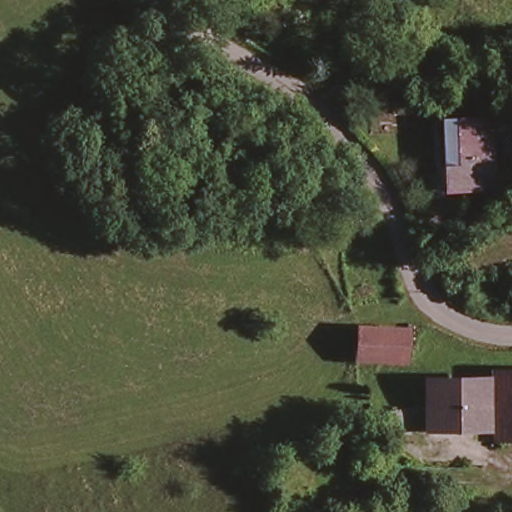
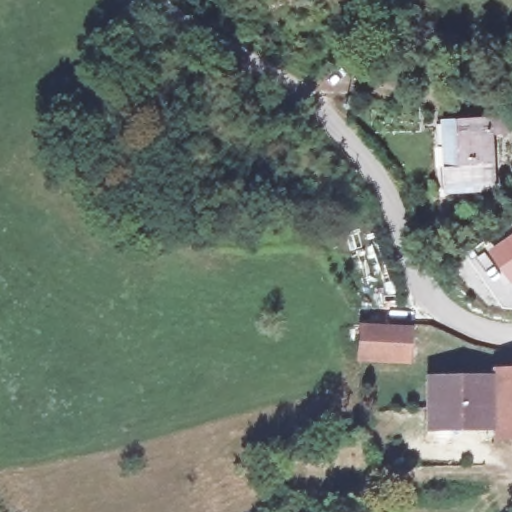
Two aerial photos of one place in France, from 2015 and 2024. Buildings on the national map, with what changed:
unchanged [(493,111),(502,181),(451,188),(441,119),(493,111)]
new [(512,230),(512,282),(511,283),(487,248),(512,230)]
unchanged [(417,330),(412,359),(362,347),(367,321),(417,330)]
unchanged [(432,413),(435,374),(496,377),(497,368),(512,369),(512,439),(492,438),(494,423),(451,419),(431,418),(432,413)]

